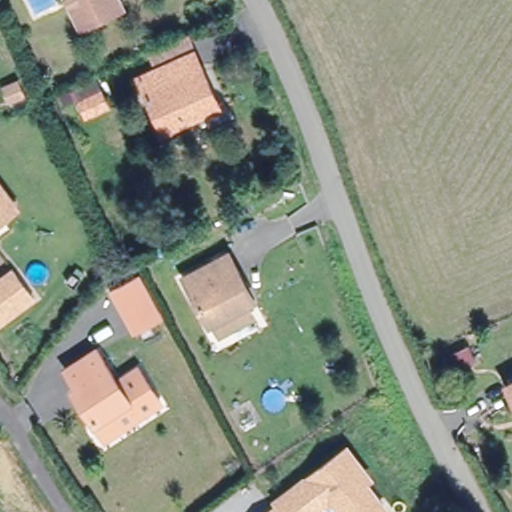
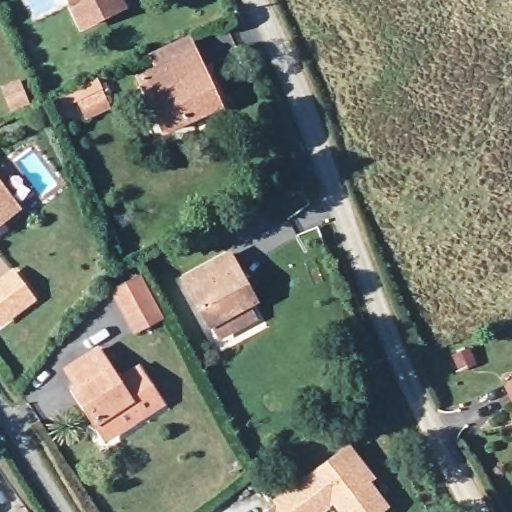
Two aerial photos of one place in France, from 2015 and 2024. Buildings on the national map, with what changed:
unchanged [(77,17),(69,0),(115,0),(116,1),(77,17)]
unchanged [(212,112),(166,132),(141,79),(162,69),(155,52),(187,38),(211,90),(220,109),(212,112)]
unchanged [(108,115),(88,124),(81,109),(102,100),(108,115)]
unchanged [(28,209),(0,231),(0,174),(28,209)]
unchanged [(225,335),(217,320),(213,322),(189,277),(231,252),(257,298),(250,302),(257,317),(225,335)]
unchanged [(145,272),(166,321),(135,335),(111,287),(145,272)]
unchanged [(15,277),(35,302),(6,324),(0,316),(0,289),(15,277)]
unchanged [(99,418),(77,384),(82,380),(70,361),(100,342),(124,379),(144,367),(164,398),(125,423),(109,434),(99,418)]
unchanged [(512,380),(512,395),(506,382),(512,380)]
unchanged [(362,473),(357,477),(382,510),(379,512),(339,512),(332,502),(319,512),(270,512),(275,508),(272,505),(346,450),(362,473)]

